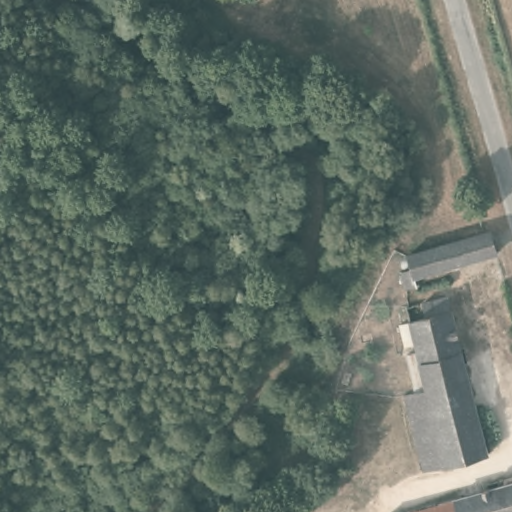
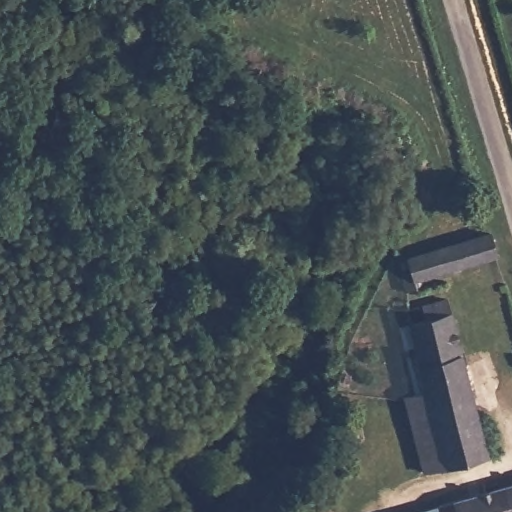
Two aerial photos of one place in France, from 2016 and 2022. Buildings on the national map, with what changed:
unchanged [(494,245),(413,271),(415,278),(406,281),(400,265),(410,262),(407,250),(488,225),(494,245)]
unchanged [(400,323),(409,321),(425,317),(421,302),(445,296),(485,451),(426,466),(405,393),(427,387),(415,341),(405,344),(403,337),(400,323)]
unchanged [(411,370),(419,367),(424,385),(416,387),(411,370)]
unchanged [(512,512),(385,512),(512,477),(512,512)]

